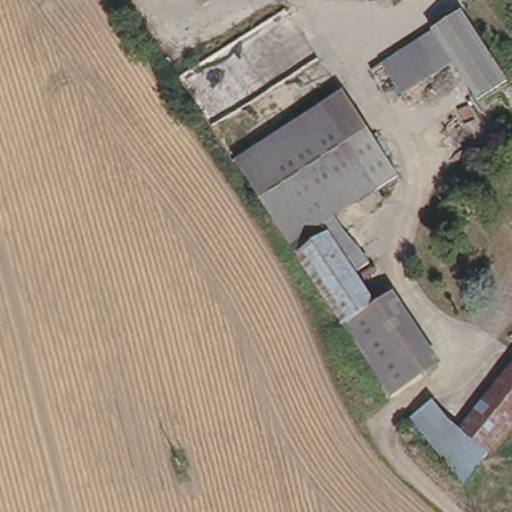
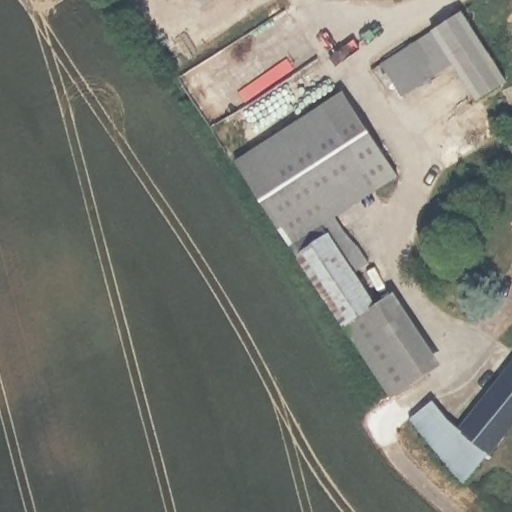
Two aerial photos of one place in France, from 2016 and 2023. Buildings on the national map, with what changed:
unchanged [(192,0),(201,0),(195,4),(192,0)]
unchanged [(393,62),(471,11),(512,73),(512,81),(487,96),(464,61),(414,93),(393,62)]
unchanged [(345,89),(401,171),(342,214),(293,240),(240,160),(345,89)]
unchanged [(342,214),(363,246),(348,256),(331,231),(300,251),(293,240),(342,214)]
unchanged [(427,374),(396,395),(300,251),(331,231),(348,256),(363,246),(374,262),(359,273),(427,374)]
unchanged [(492,455),(463,431),(512,374),(512,432),(506,438),(492,455)]
unchanged [(479,470),(466,486),(463,484),(415,422),(436,405),(456,431),(451,434),(479,470)]

